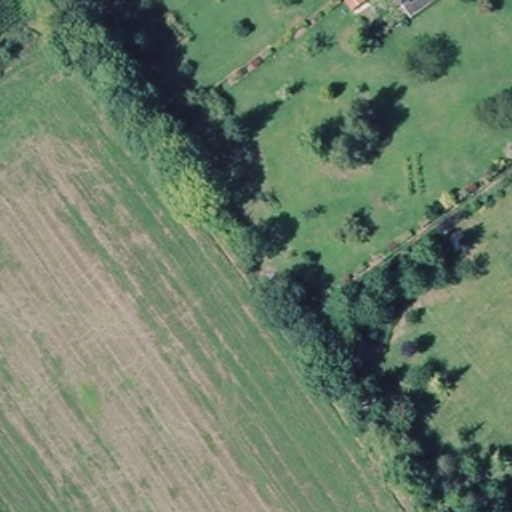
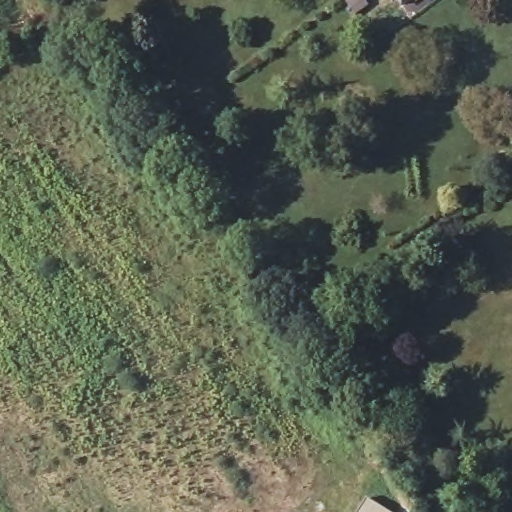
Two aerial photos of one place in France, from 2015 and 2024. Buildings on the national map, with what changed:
unchanged [(396,0),(417,0),(421,0),(418,2),(405,11),(396,0)]
new [(367,497),(390,512),(357,512),(367,497)]

